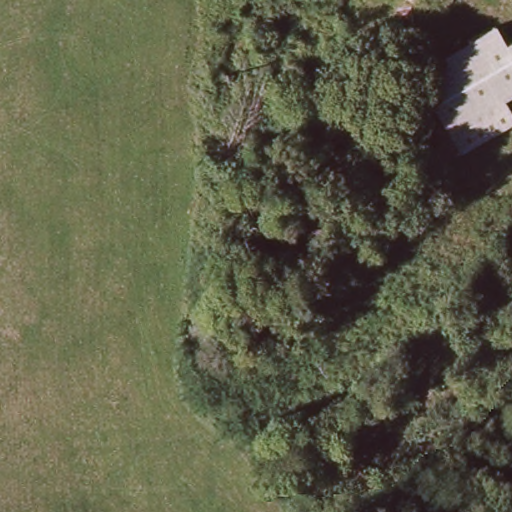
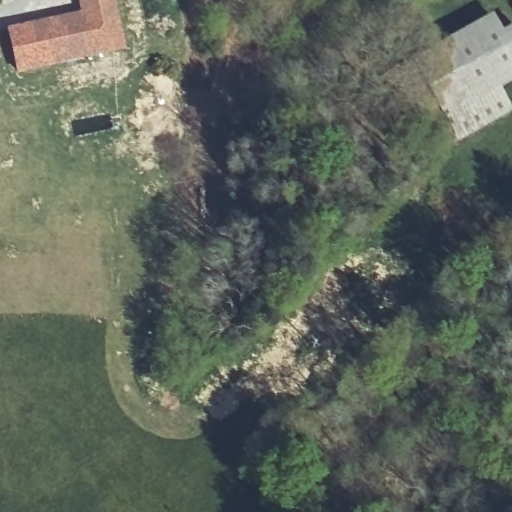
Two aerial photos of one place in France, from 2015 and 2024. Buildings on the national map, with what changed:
new [(79,12),(77,0),(118,0),(129,49),(16,75),(5,27),(79,12)]
unchanged [(413,58),(493,18),(504,38),(512,35),(512,80),(496,88),(506,110),(449,136),(413,58)]

